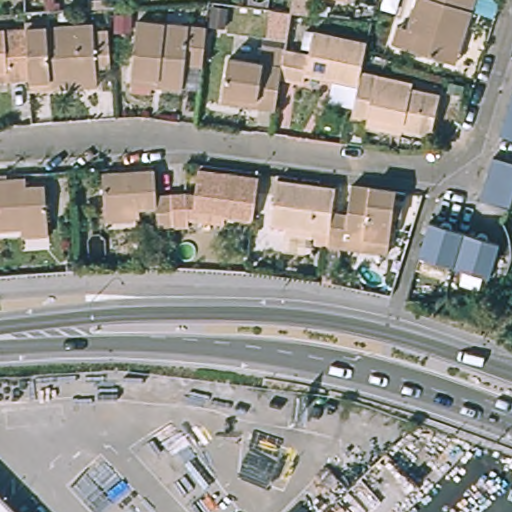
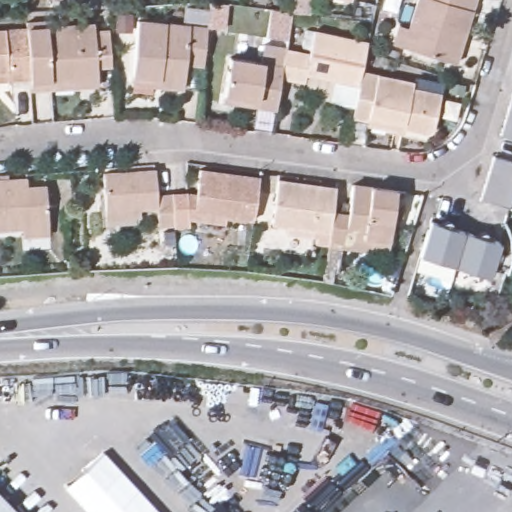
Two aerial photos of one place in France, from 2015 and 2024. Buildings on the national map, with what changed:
unchanged [(307,0),(305,9),(288,6),(289,0),(307,0)]
unchanged [(398,45),(412,0),(474,0),(455,62),(398,45)]
unchanged [(199,67),(183,65),(180,91),(155,89),(156,81),(128,78),(134,23),(202,30),(199,67)]
unchanged [(92,24),(92,32),(106,31),(107,52),(110,74),(49,77),(49,81),(27,82),(26,79),(24,28),(92,24)]
unchanged [(3,81),(2,72),(0,73),(0,29),(24,28),(26,79),(3,81)]
unchanged [(362,52),(358,70),(355,85),(353,95),(319,87),(321,78),(301,74),(299,82),(277,78),(280,62),(282,49),(304,52),(309,32),(364,43),(362,52)]
unchanged [(250,105),(250,101),(218,96),(225,52),(257,57),(260,45),(282,49),(280,62),(277,78),(272,108),(250,105)]
unchanged [(365,128),(365,121),(348,117),(349,115),(353,95),(355,85),(358,70),(408,80),(407,87),(432,92),(423,136),(398,130),(397,135),(365,128)]
unchanged [(512,98),(512,140),(500,137),(512,98)]
unchanged [(512,181),(504,206),(475,197),(488,154),(512,162),(512,181)]
unchanged [(192,207),(198,166),(255,173),(250,216),(192,207)]
unchanged [(187,222),(170,223),(170,220),(155,221),(154,202),(98,207),(95,171),(151,167),(153,192),(168,192),(185,191),(187,222)]
unchanged [(274,221),(280,176),(335,184),(332,208),(330,229),(274,221)]
unchanged [(330,229),(332,208),(349,211),(353,180),(396,186),(389,237),(346,232),(345,242),(328,241),(330,229)]
unchanged [(21,181),(22,187),(40,187),(43,226),(0,228),(0,182),(21,181)]
unchanged [(435,222),(437,220),(439,219),(442,219),(445,220),(446,221),(447,224),(447,226),(459,230),(448,265),(413,253),(424,219),(435,222)]
unchanged [(471,234),(473,232),(475,230),(477,230),(480,231),(482,232),(483,235),(483,237),(493,241),(483,275),(448,265),(459,230),(471,234)]
new [(102,451),(158,512),(89,512),(65,485),(102,451)]
unchanged [(9,512),(0,512),(0,503),(9,512)]

